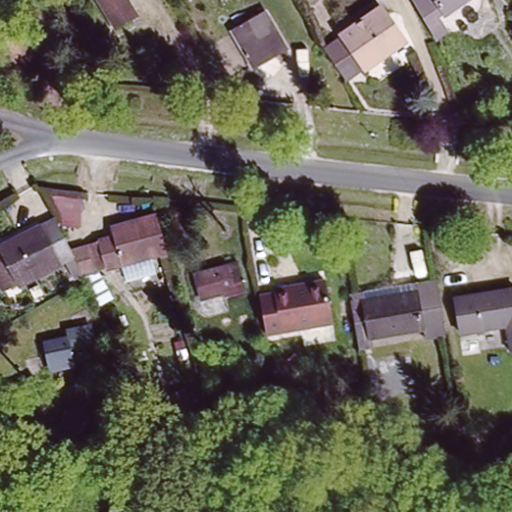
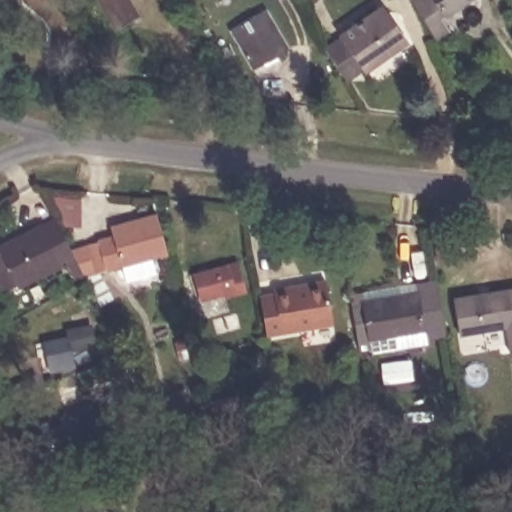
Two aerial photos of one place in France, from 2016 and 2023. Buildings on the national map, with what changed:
unchanged [(100,0),(123,0),(133,18),(116,28),(100,0)]
unchanged [(414,7),(421,0),(469,0),(444,17),(447,30),(435,38),(414,7)]
unchanged [(347,39),(344,32),(385,8),(405,45),(367,67),(365,64),(345,75),(330,48),(347,39)]
unchanged [(235,32),(266,15),(285,48),(275,54),(254,66),(235,32)]
unchanged [(75,241),(61,249),(66,259),(23,281),(3,241),(60,212),(75,241)]
unchanged [(77,244),(95,238),(123,230),(122,225),(165,212),(175,247),(105,267),(90,271),(77,244)]
unchanged [(215,299),(215,295),(198,298),(197,289),(189,291),(186,276),(220,268),(223,279),(232,277),(236,294),(215,299)]
unchanged [(444,335),(422,339),(420,331),(365,339),(366,346),(356,347),(347,295),(360,293),(360,295),(412,286),(412,283),(435,282),(444,335)]
unchanged [(333,332),(267,346),(255,297),(324,283),(333,332)]
unchanged [(506,338),(505,327),(460,334),(454,300),(512,291),(512,337),(506,338)]
unchanged [(47,367),(42,342),(65,338),(69,362),(47,367)]
unchanged [(155,398),(171,393),(182,427),(166,432),(155,398)]
unchanged [(56,453),(47,436),(62,428),(58,421),(77,412),(87,431),(75,436),(78,442),(56,453)]
unchanged [(131,418),(138,441),(132,442),(117,447),(108,417),(122,413),(125,420),(131,418)]

